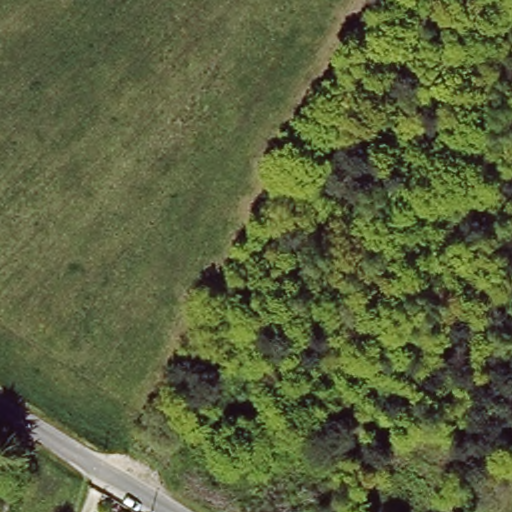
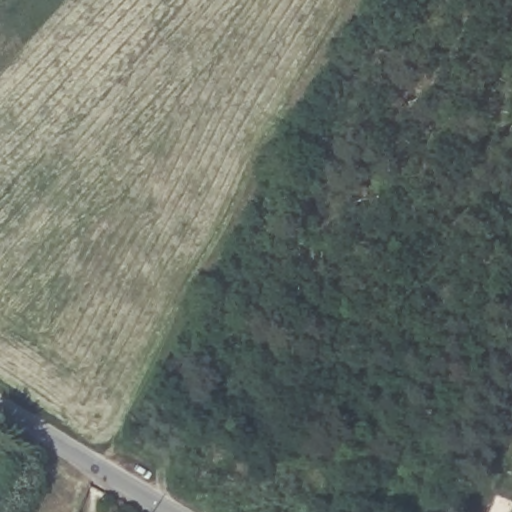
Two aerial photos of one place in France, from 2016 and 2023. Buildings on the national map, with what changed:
[]

